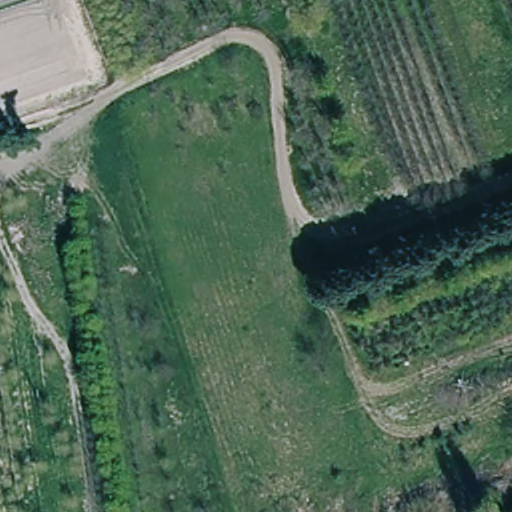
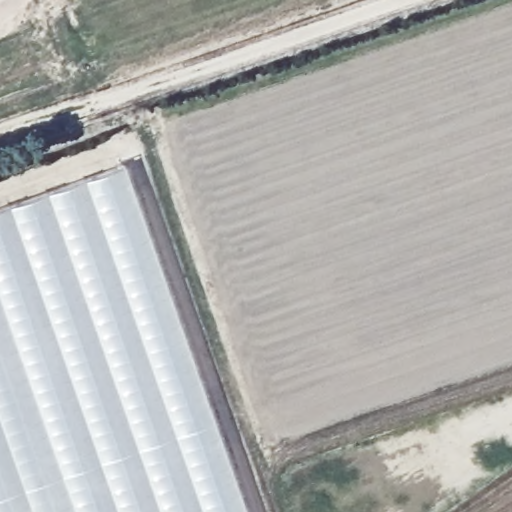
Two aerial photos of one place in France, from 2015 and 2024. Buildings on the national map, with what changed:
new [(121,160),(244,512),(0,512),(0,203),(121,160)]

